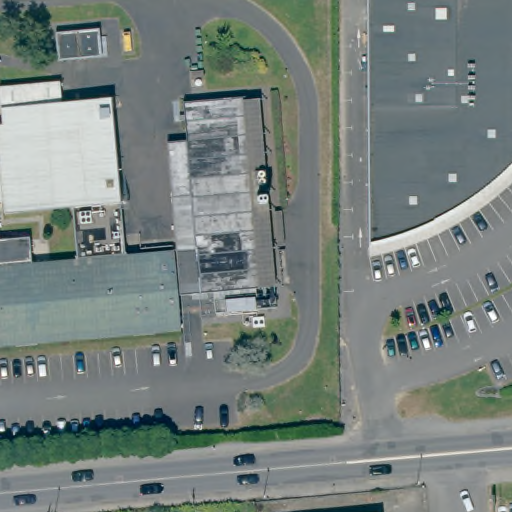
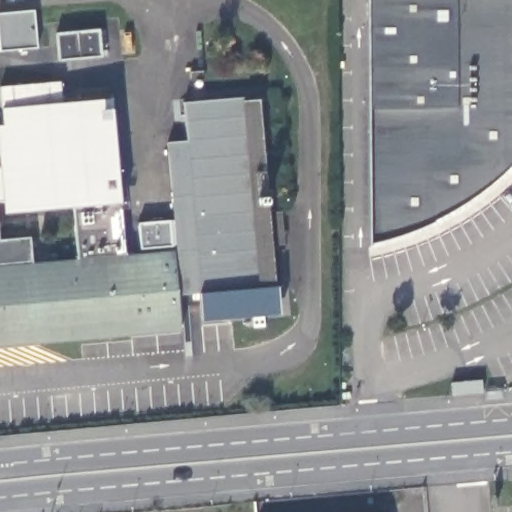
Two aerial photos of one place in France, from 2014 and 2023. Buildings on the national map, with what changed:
unchanged [(508,192),(502,198),(498,200),(492,206),(488,208),(482,214),(478,216),(471,221),(467,224),(463,226),(457,230),(453,232),(450,234),(447,235),(441,239),(437,240),(434,242),(409,252),(409,253),(396,257),(374,262),(372,0),(512,0),(512,189),(508,192)]
new [(0,14),(32,10),(37,48),(0,52),(0,14)]
unchanged [(102,58),(59,62),(57,36),(99,32),(102,58)]
unchanged [(2,103),(1,83),(61,78),(64,98),(2,103)]
unchanged [(34,260),(77,256),(75,204),(11,209),(2,103),(64,98),(112,94),(127,252),(175,248),(177,284),(184,284),(172,137),(189,136),(185,94),(247,88),(265,287),(179,295),(181,326),(0,342),(0,237),(32,235),(34,260)]
new [(265,287),(277,286),(279,315),(202,322),(199,293),(265,287)]

